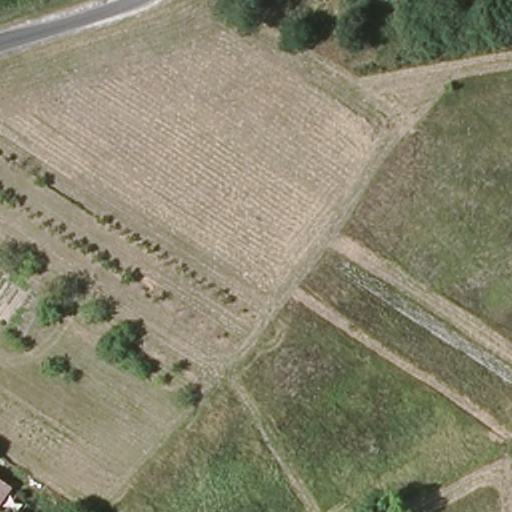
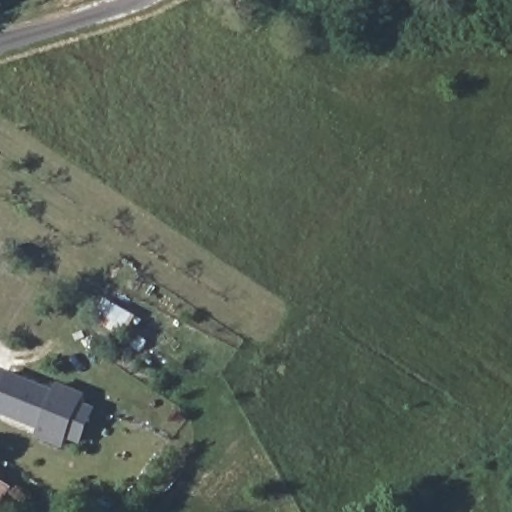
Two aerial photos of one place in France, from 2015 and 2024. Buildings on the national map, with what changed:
new [(84,444),(70,438),(66,448),(37,437),(41,430),(0,413),(0,377),(6,379),(10,372),(57,390),(60,383),(86,393),(82,401),(98,407),(84,444)]
unchanged [(17,488),(1,512),(0,512),(0,476),(17,488)]

